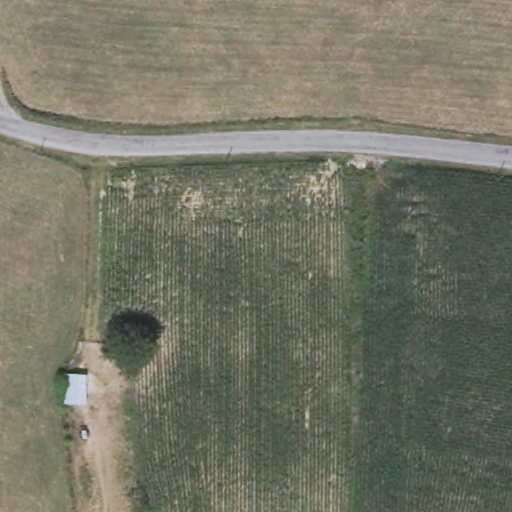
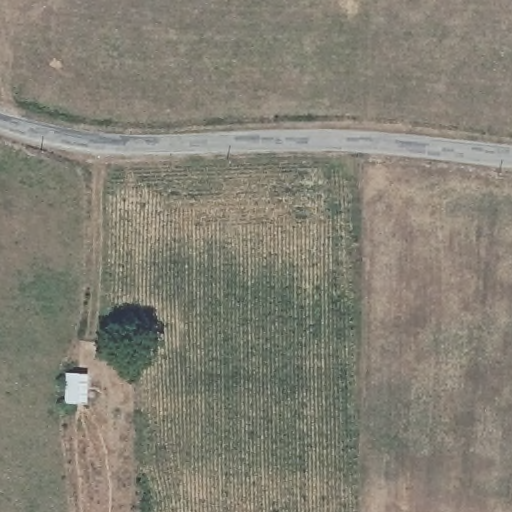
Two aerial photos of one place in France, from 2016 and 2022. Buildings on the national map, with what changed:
unchanged [(64,382),(79,381),(84,407),(69,409),(64,382)]

